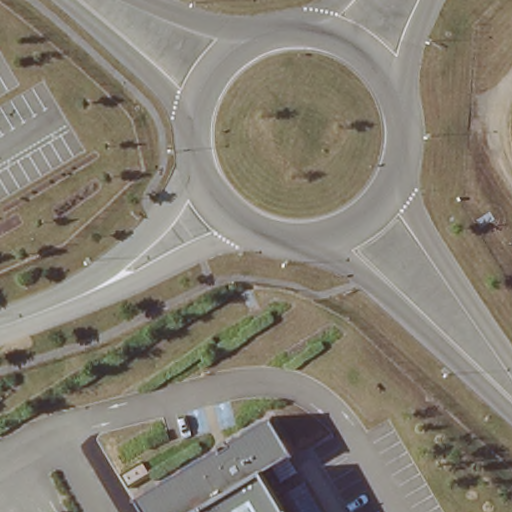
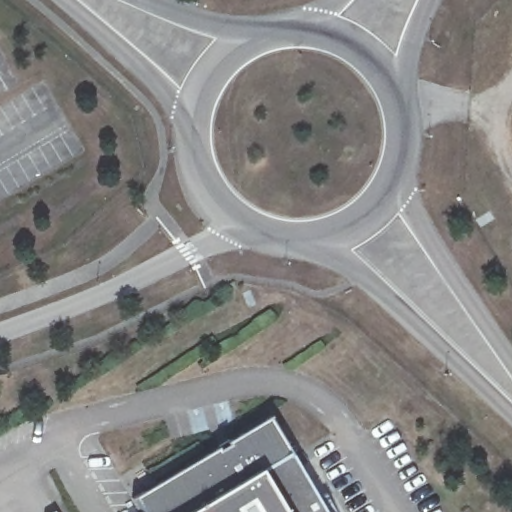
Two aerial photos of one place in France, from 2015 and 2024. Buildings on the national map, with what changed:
unchanged [(275,420),(297,454),(260,473),(284,512),(148,512),(139,498),(275,420)]

